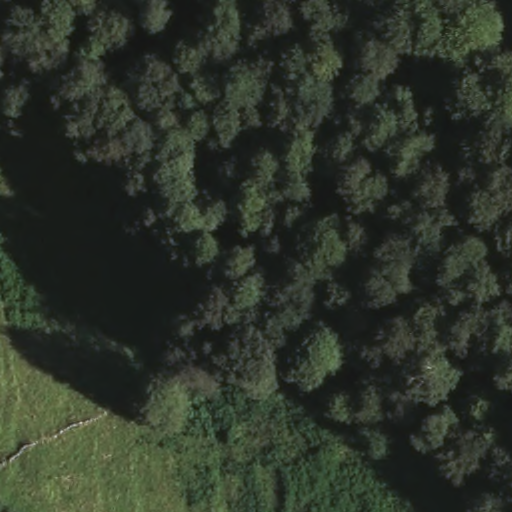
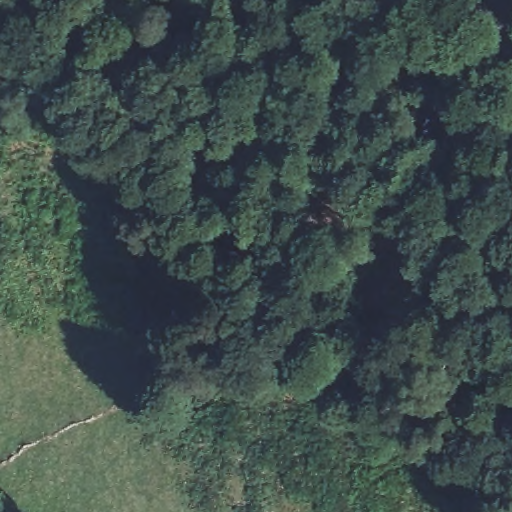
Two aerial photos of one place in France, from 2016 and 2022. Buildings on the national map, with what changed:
unchanged [(441,422),(457,442),(433,459),(399,412),(422,395),(441,422)]

